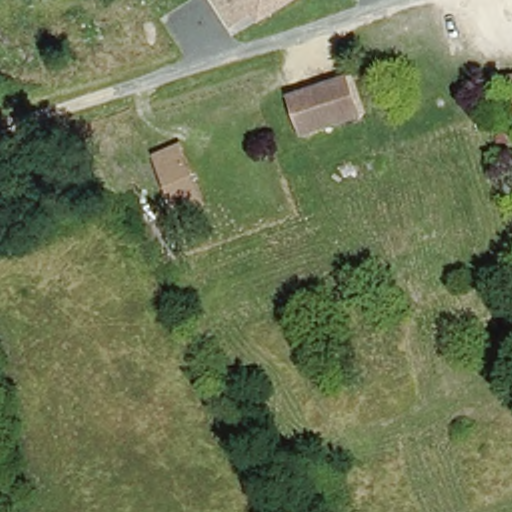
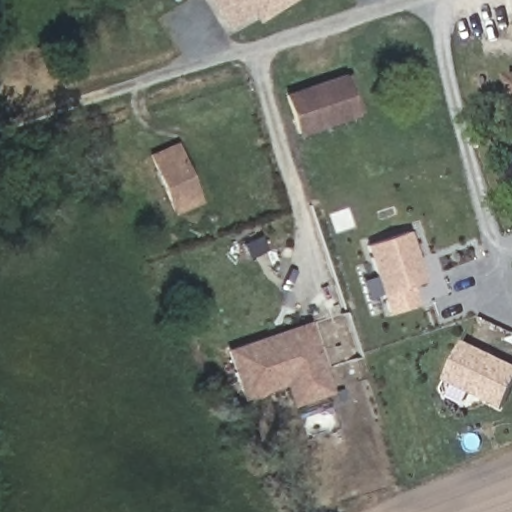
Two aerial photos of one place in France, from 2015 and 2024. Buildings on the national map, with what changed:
unchanged [(254,9),(232,23),(218,0),(288,0),(269,13),(260,18),(254,9)]
unchanged [(289,91),(343,72),(355,110),(302,129),(289,91)]
unchanged [(512,108),(507,76),(512,75),(512,108)]
unchanged [(174,219),(169,206),(152,161),(150,156),(174,147),(176,151),(193,196),(199,209),(174,219)]
new [(408,235),(422,280),(409,284),(415,304),(383,314),(363,248),(408,235)]
demolished [(452,262),(459,286),(473,282),(484,312),(462,322),(450,291),(412,303),(403,279),(452,262)]
new [(335,395),(294,408),(286,387),(244,399),(226,349),(311,323),(335,395)]
new [(512,365),(512,387),(501,409),(445,382),(462,343),(512,365)]

